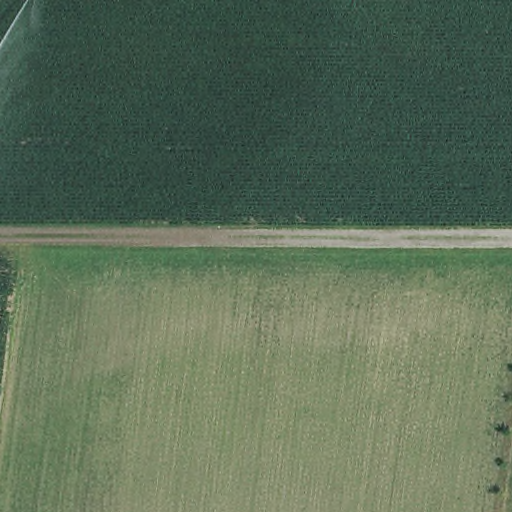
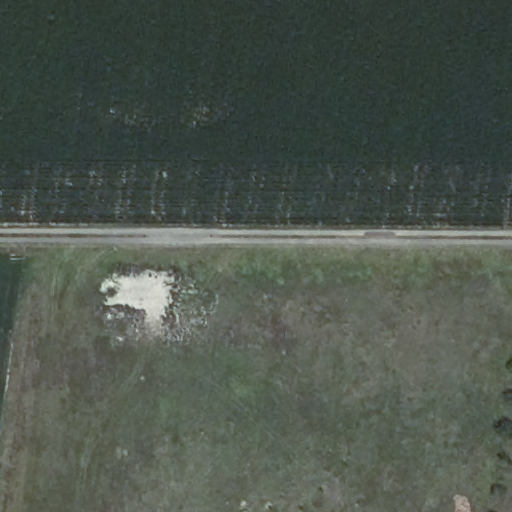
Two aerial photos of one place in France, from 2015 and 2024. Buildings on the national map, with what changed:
[]

